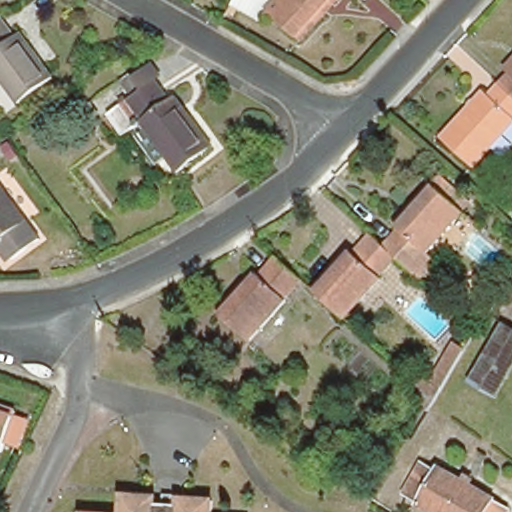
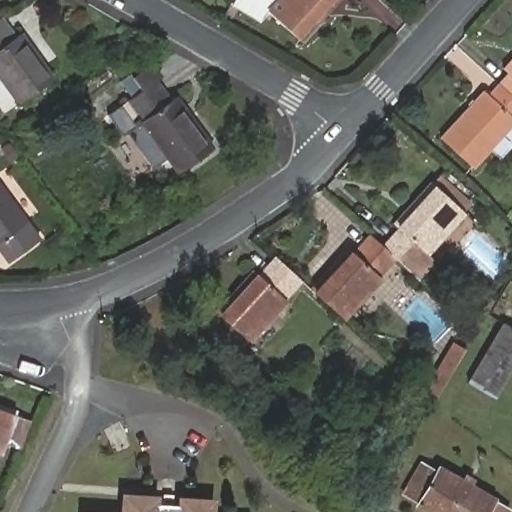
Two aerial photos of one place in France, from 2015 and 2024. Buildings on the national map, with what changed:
unchanged [(265,21),(236,5),(240,0),(340,0),(305,38),(273,11),(265,21)]
unchanged [(16,38),(20,35),(51,79),(18,102),(0,77),(0,17),(16,38)]
unchanged [(511,74),(506,70),(512,63),(512,93),(501,84),(511,74)]
unchanged [(142,89),(155,80),(170,99),(175,95),(212,146),(177,171),(140,121),(124,133),(110,114),(131,97),(120,81),(130,74),(133,77),(142,89)]
unchanged [(512,126),(475,167),(444,139),(487,91),(491,95),(501,84),(512,93),(512,126)]
unchanged [(396,262),(386,253),(396,242),(392,238),(435,190),(464,219),(430,257),(438,266),(422,285),(413,277),(396,262)]
unchanged [(33,236),(5,255),(0,255),(0,254),(0,191),(33,236)]
unchanged [(386,253),(396,262),(380,280),(381,283),(346,324),(315,297),(353,256),(356,258),(372,240),(386,253)]
unchanged [(301,279),(285,297),(286,300),(250,340),(219,310),(255,270),(260,276),(277,257),(301,279)]
unchanged [(512,327),(512,370),(498,395),(470,380),(504,322),(512,327)]
unchanged [(407,395),(415,386),(423,379),(440,395),(435,404),(425,413),(407,395)]
unchanged [(17,412),(2,453),(0,452),(0,406),(17,412)]
unchanged [(437,468),(440,465),(498,497),(496,500),(512,509),(512,510),(511,512),(435,512),(402,493),(422,460),(437,468)]
unchanged [(154,503),(165,504),(165,511),(174,512),(135,512),(135,502),(154,503)]
unchanged [(185,503),(185,512),(174,512),(175,502),(185,503)]
unchanged [(205,508),(226,510),(226,512),(194,512),(195,508),(205,508)]

